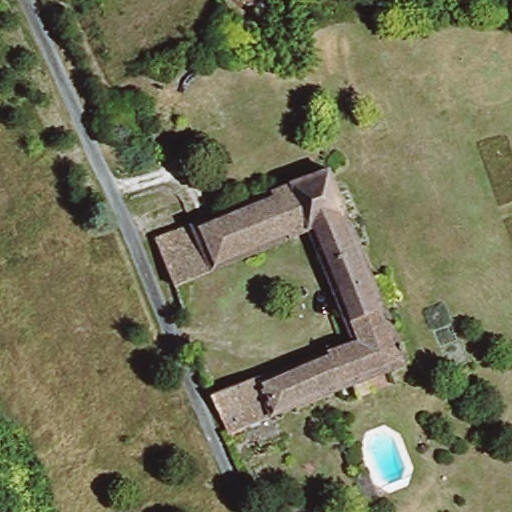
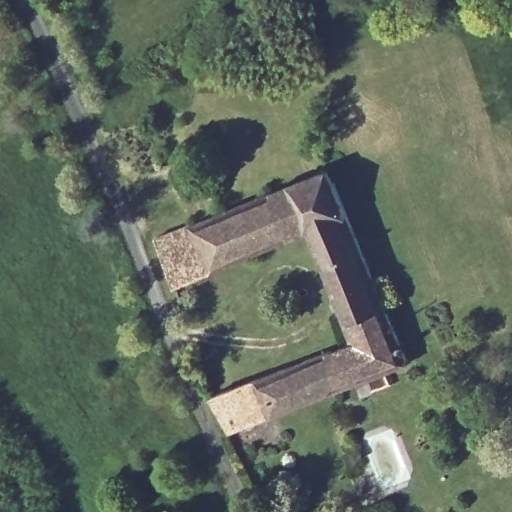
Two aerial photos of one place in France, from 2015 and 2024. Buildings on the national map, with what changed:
unchanged [(411,362),(231,434),(214,387),(350,335),(314,240),(179,292),(160,244),(315,176),(312,169),(330,162),(411,362)]

